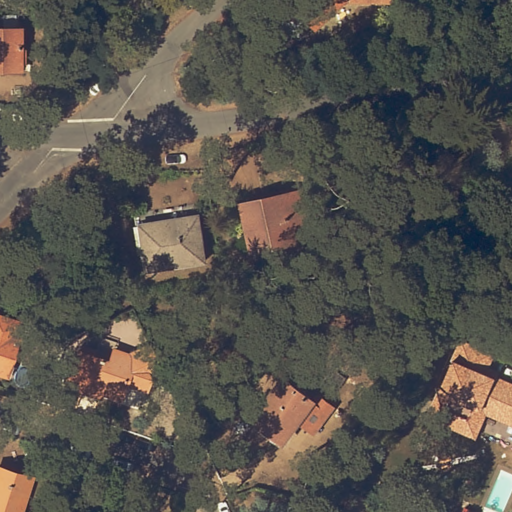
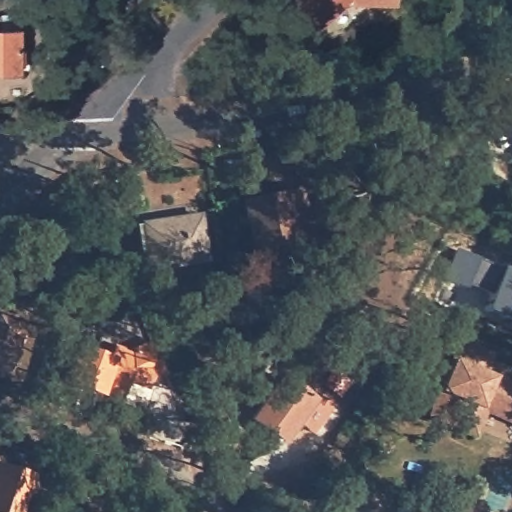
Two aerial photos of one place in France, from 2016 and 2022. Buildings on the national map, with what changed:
unchanged [(321,19),(319,17),(305,31),(296,30),(290,23),(290,14),(303,1),(303,0),(339,0),(321,19)]
unchanged [(0,21),(4,21),(4,32),(22,32),(22,54),(25,54),(25,65),(22,67),(21,76),(3,76),(0,76),(0,21)]
unchanged [(301,220),(305,238),(253,249),(244,204),(286,195),(301,191),(303,204),(307,218),(301,220)]
unchanged [(147,223),(197,215),(205,260),(147,269),(145,252),(152,250),(147,223)]
new [(458,249),(512,272),(512,328),(502,324),(506,317),(485,308),(491,293),(467,283),(466,285),(446,277),(458,249)]
unchanged [(12,342),(0,377),(0,324),(12,328),(8,340),(12,342)]
unchanged [(65,388),(77,354),(82,342),(97,347),(93,359),(107,364),(111,354),(126,359),(147,348),(159,372),(149,377),(145,389),(125,382),(118,401),(99,395),(97,399),(65,388)]
unchanged [(490,352),(481,373),(512,387),(512,425),(484,412),(478,425),(458,416),(456,423),(435,414),(466,342),(490,352)]
unchanged [(282,441),(252,419),(282,378),(312,402),(282,441)]
unchanged [(0,512),(0,473),(31,482),(21,512),(0,512)]
unchanged [(350,491),(378,500),(375,512),(353,512),(345,509),(350,491)]

